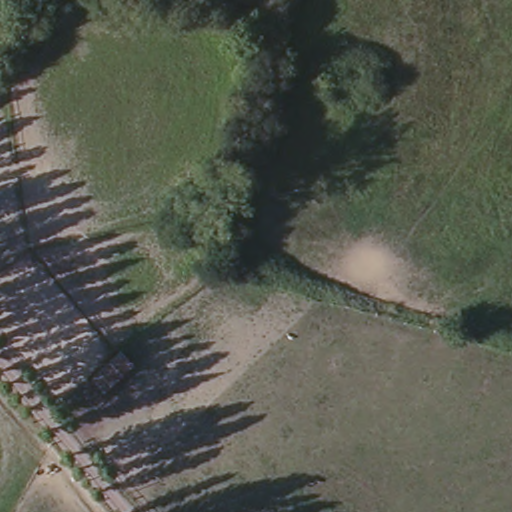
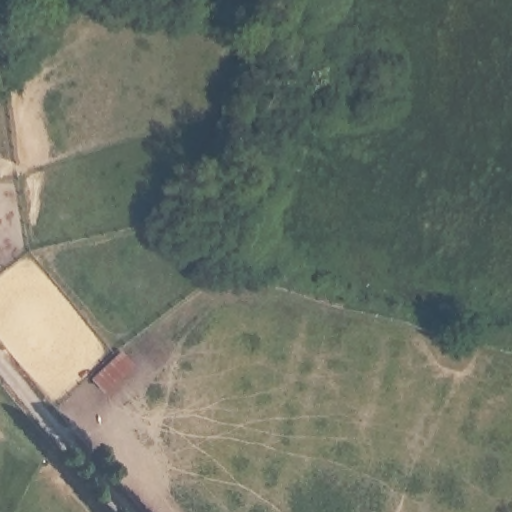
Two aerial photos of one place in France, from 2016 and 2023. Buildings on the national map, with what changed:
unchanged [(118,342),(139,360),(105,395),(85,373),(118,342)]

